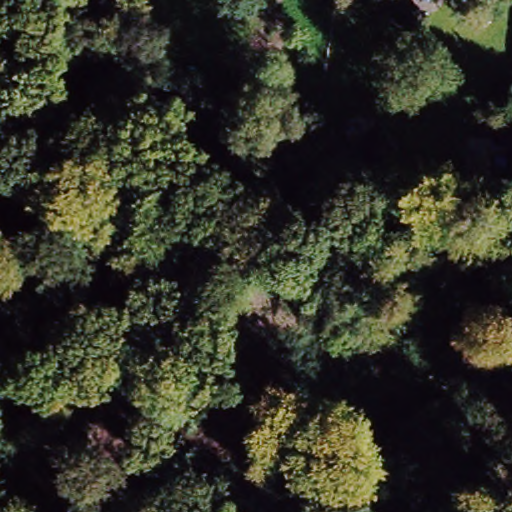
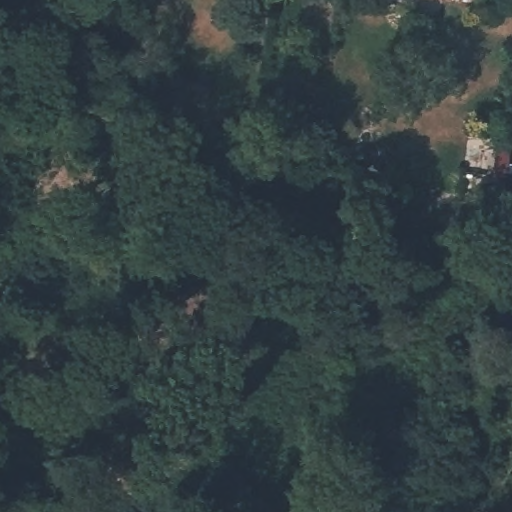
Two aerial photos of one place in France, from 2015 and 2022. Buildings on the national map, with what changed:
[]

